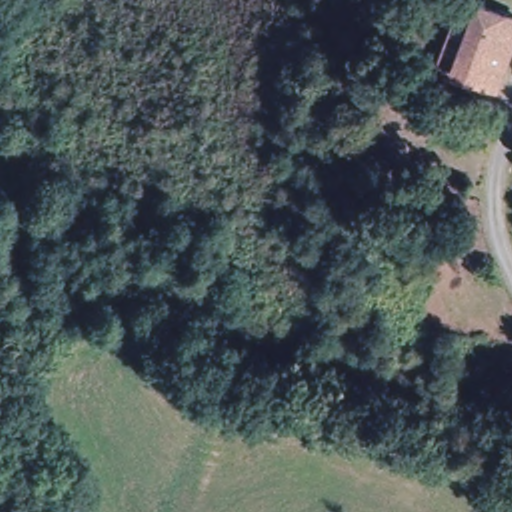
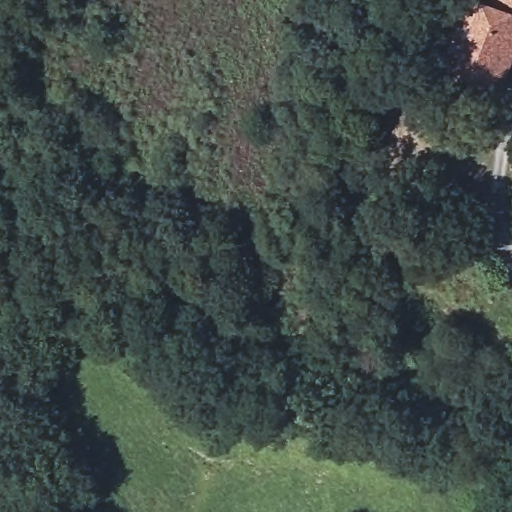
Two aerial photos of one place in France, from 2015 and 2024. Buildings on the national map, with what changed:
unchanged [(441,68),(459,16),(463,0),(481,0),(495,5),(512,10),(512,54),(507,69),(501,87),(478,80),(456,73),(441,68)]

